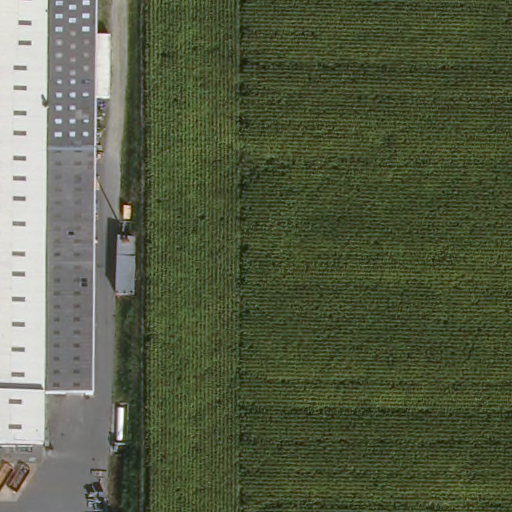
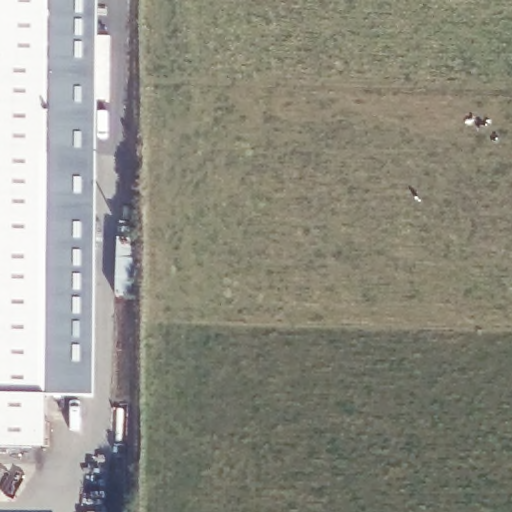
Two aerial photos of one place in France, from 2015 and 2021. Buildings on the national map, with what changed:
unchanged [(40,395),(38,446),(0,445),(0,0),(102,0),(97,155),(94,397),(40,395)]
unchanged [(123,243),(135,244),(134,302),(119,302),(123,243)]

